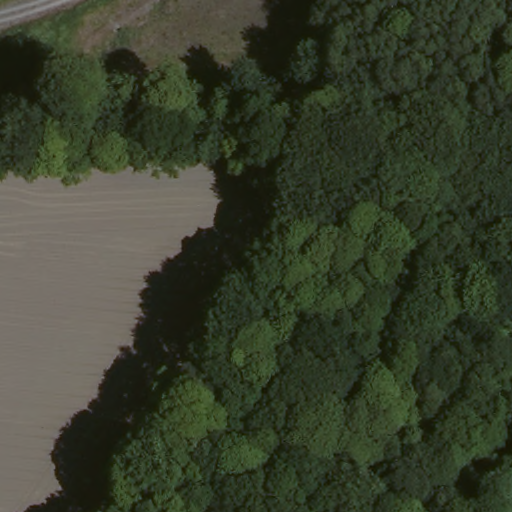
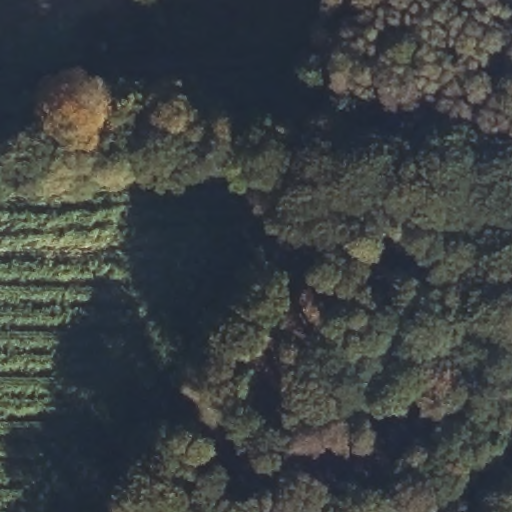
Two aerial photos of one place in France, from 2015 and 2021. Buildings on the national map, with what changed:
[]

